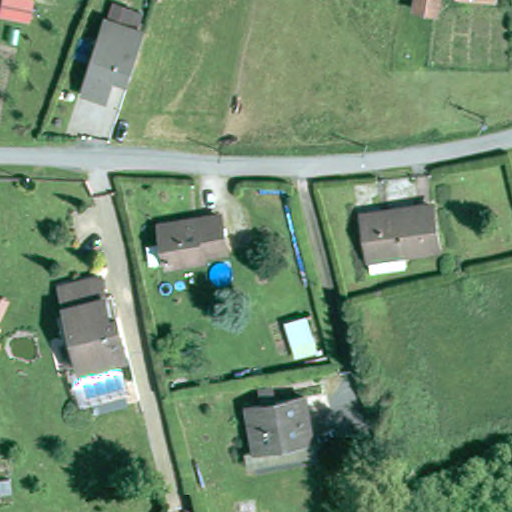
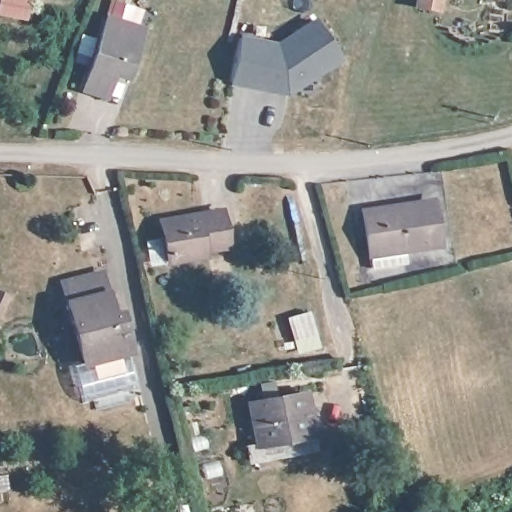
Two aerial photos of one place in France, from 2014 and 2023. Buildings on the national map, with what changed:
unchanged [(0,15),(0,0),(31,0),(28,20),(0,15)]
unchanged [(427,13),(415,10),(418,0),(441,0),(437,15),(427,13)]
unchanged [(140,28),(130,25),(112,19),(117,4),(135,10),(145,13),(140,28)]
new [(342,59),(288,95),(230,85),(240,36),(277,43),(313,17),(342,59)]
unchanged [(113,78),(107,100),(85,94),(108,19),(148,31),(133,83),(113,78)]
unchanged [(435,200),(445,242),(374,256),(367,214),(435,200)]
unchanged [(175,267),(167,226),(227,213),(235,253),(175,267)]
unchanged [(112,269),(128,347),(122,349),(79,358),(63,278),(112,269)]
unchanged [(130,386),(83,396),(76,359),(79,358),(122,349),(130,386)]
unchanged [(305,386),(315,431),(255,443),(247,399),(305,386)]
unchanged [(320,448),(249,462),(245,444),(255,443),(315,431),(320,448)]

